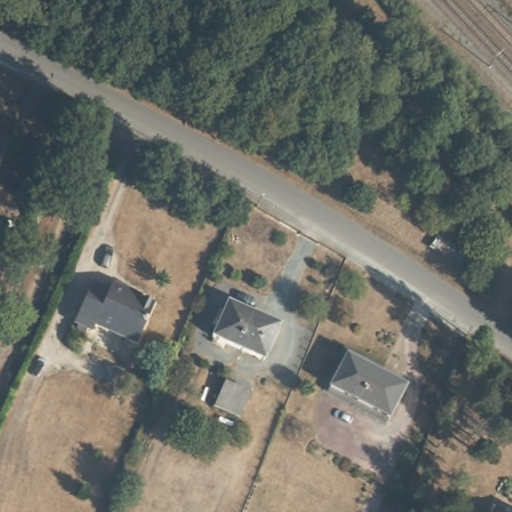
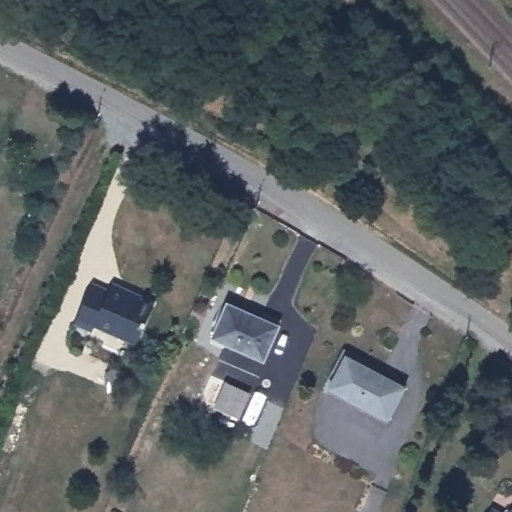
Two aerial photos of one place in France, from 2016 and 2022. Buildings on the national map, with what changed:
unchanged [(108,283),(113,276),(134,285),(133,288),(156,299),(139,339),(95,322),(94,325),(74,316),(91,275),(108,283)]
unchanged [(275,321),(260,357),(217,339),(233,302),(275,321)]
unchanged [(339,374),(345,359),(403,381),(391,413),(327,388),(333,372),(339,374)]
unchanged [(216,409),(227,385),(249,394),(239,419),(216,409)]
unchanged [(491,505),(503,512),(487,512),(491,505)]
unchanged [(507,509),(511,512),(506,512),(507,509)]

